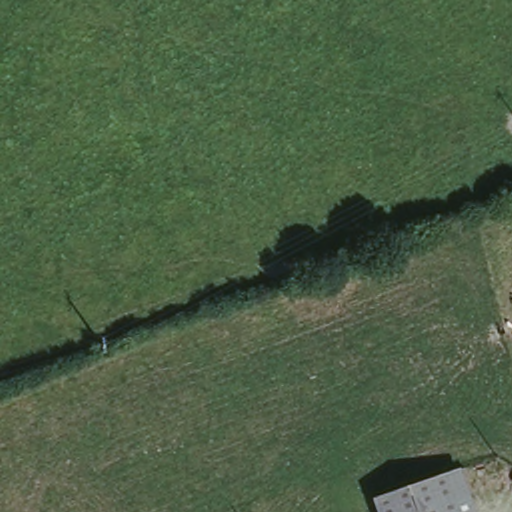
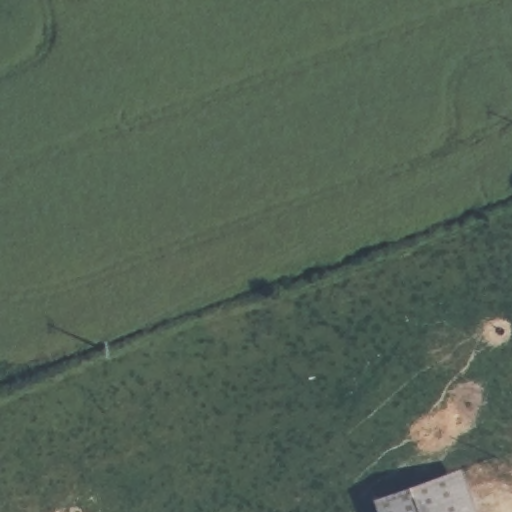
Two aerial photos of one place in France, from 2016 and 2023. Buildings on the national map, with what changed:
unchanged [(477,512),(378,512),(374,500),(460,467),(477,512)]

